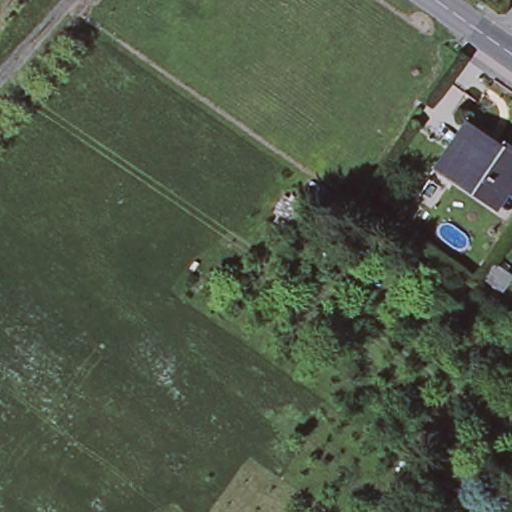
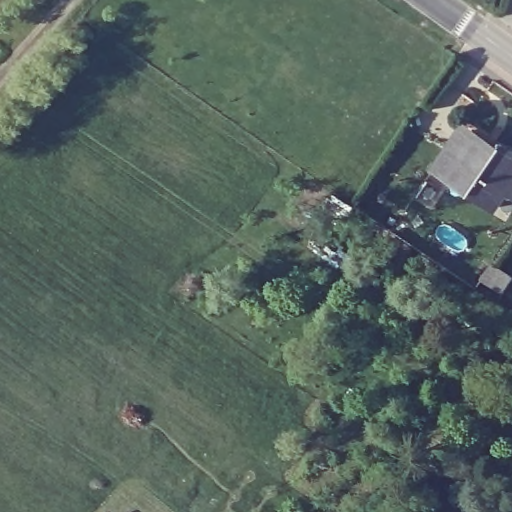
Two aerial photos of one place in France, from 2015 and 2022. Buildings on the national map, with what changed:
unchanged [(464,119),(512,152),(512,180),(505,191),(497,186),(492,193),(485,203),(430,166),(438,155),(459,125),(464,119)]

